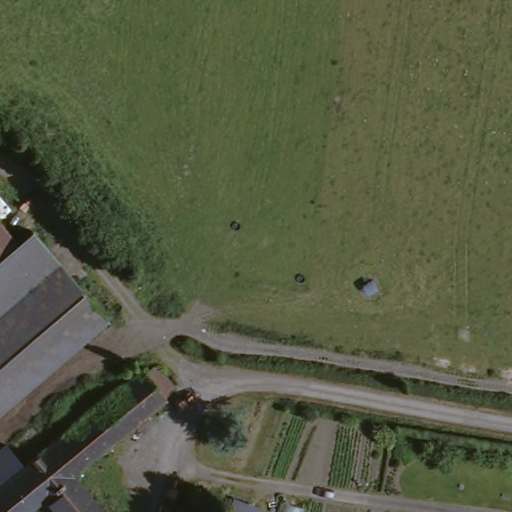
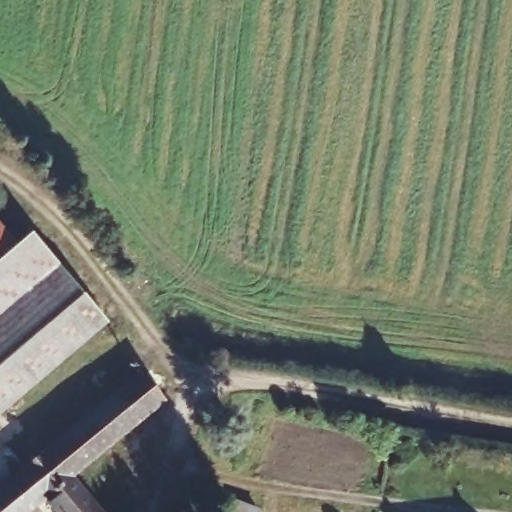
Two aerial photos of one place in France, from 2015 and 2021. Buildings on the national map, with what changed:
unchanged [(98,335),(0,417),(0,220),(98,335)]
unchanged [(73,475),(103,512),(58,512),(45,496),(26,512),(0,512),(0,482),(20,466),(142,370),(157,360),(176,386),(164,396),(167,400),(73,475)]
unchanged [(20,466),(0,482),(0,449),(4,446),(11,455),(20,466)]
unchanged [(259,505),(257,512),(230,512),(235,498),(259,505)]

